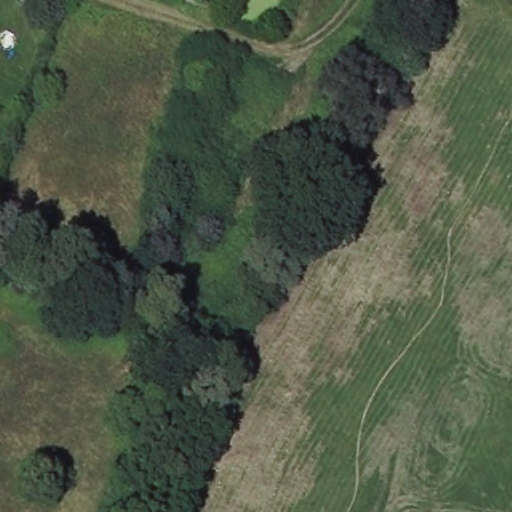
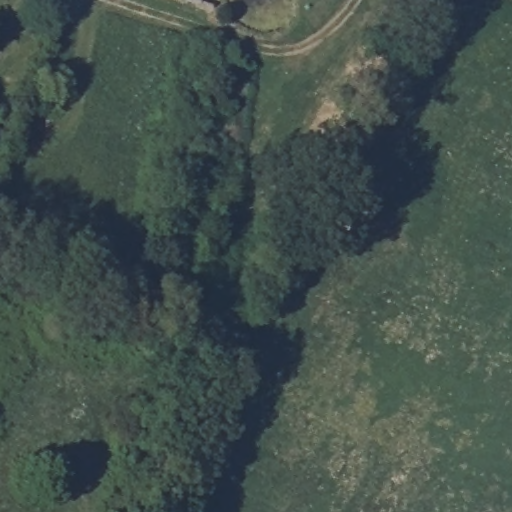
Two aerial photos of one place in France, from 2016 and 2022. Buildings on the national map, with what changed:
[]

